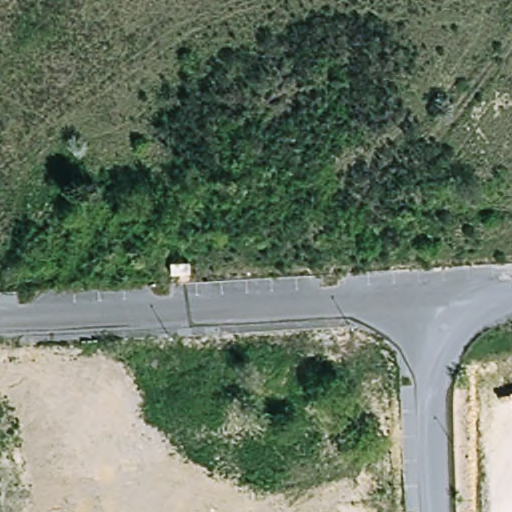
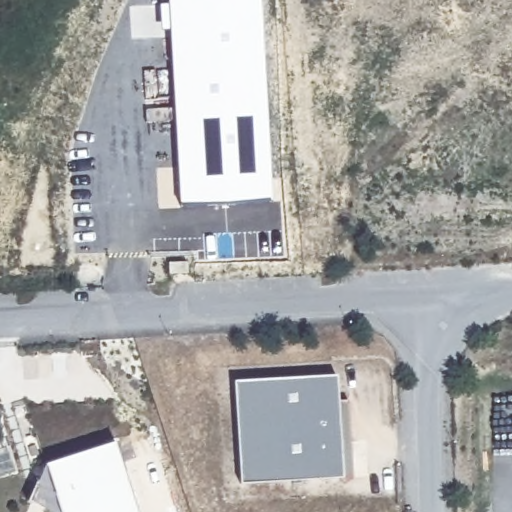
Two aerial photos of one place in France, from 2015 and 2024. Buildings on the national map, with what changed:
new [(271,202),(180,204),(168,29),(160,30),(158,5),(167,3),(167,0),(259,0),(271,202)]
new [(235,383),(335,377),(338,401),(346,400),(351,476),(342,478),(240,483),(235,383)]
demolished [(348,398),(336,398),(336,385),(349,386),(348,398)]
new [(136,512),(58,512),(43,466),(113,444),(136,512)]

